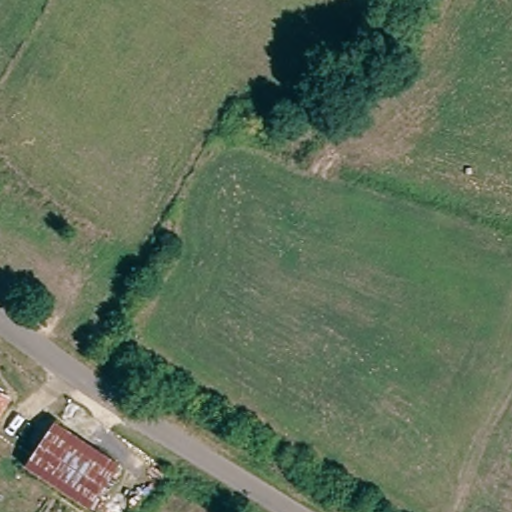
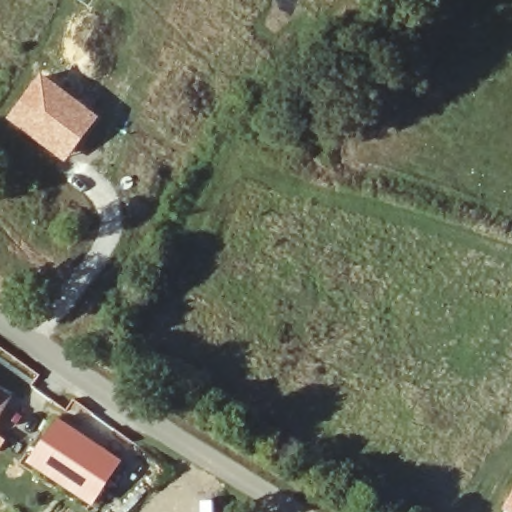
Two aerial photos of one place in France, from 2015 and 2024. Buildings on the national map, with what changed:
new [(39,71),(99,116),(64,163),(4,117),(39,71)]
unchanged [(11,419),(0,437),(0,436),(0,387),(21,398),(11,419)]
unchanged [(117,464),(92,504),(26,464),(53,423),(117,464)]
new [(503,512),(500,510),(512,489),(512,512),(503,512)]

